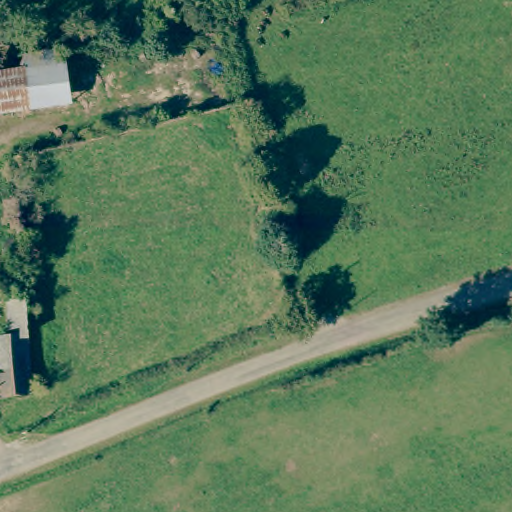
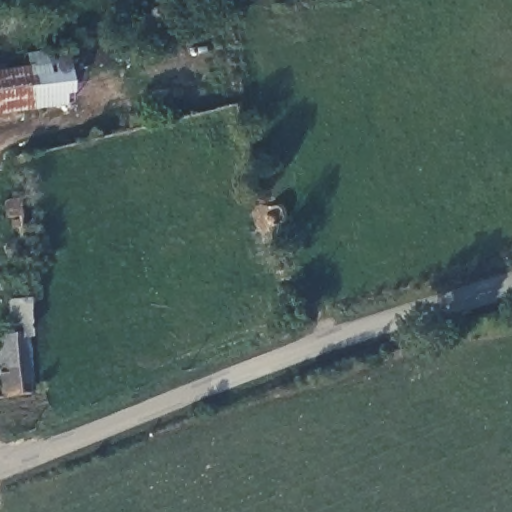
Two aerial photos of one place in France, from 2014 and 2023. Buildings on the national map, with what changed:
unchanged [(57,52),(65,105),(0,113),(0,59),(57,52)]
unchanged [(1,215),(1,197),(18,197),(20,214),(1,215)]
unchanged [(22,255),(18,259),(12,260),(7,257),(5,252),(7,246),(12,242),(18,242),(23,245),(23,249),(22,255)]
unchanged [(0,399),(0,336),(1,336),(0,319),(0,303),(20,302),(25,396),(0,399)]

